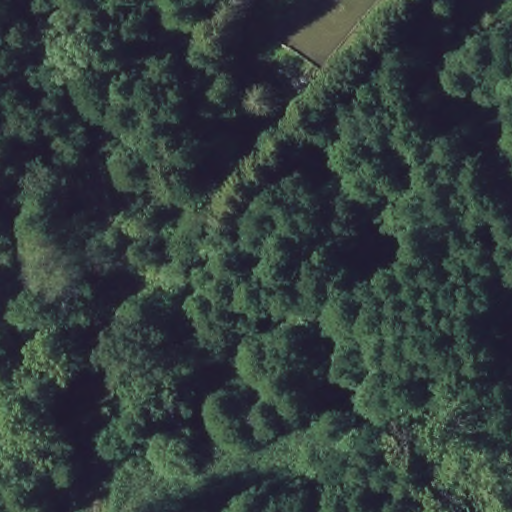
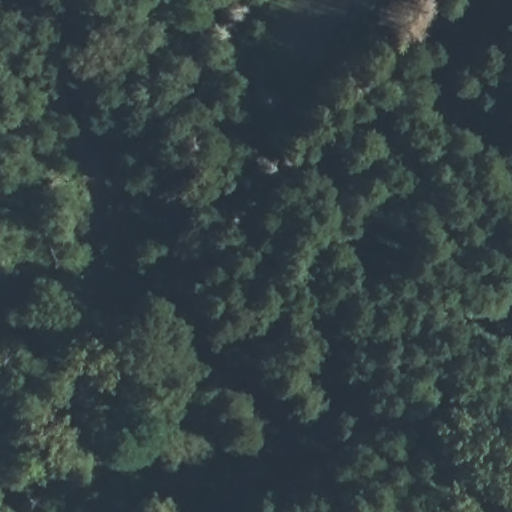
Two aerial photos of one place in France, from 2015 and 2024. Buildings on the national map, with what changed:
[]

